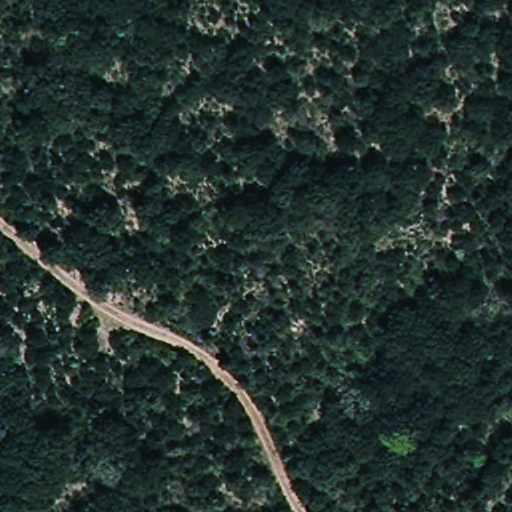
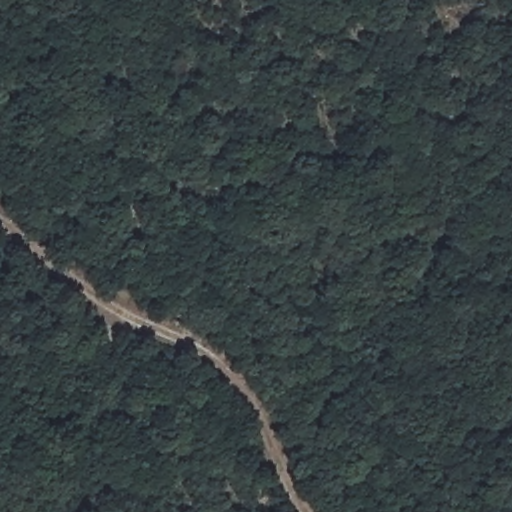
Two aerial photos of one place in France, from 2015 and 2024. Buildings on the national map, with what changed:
[]

